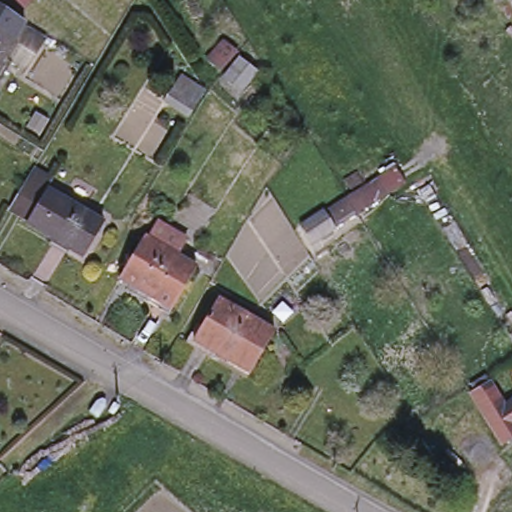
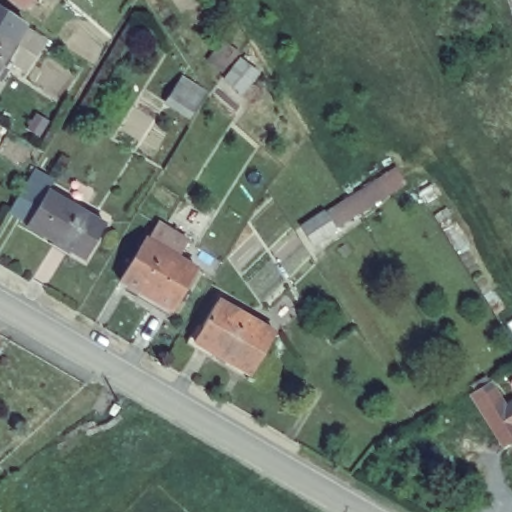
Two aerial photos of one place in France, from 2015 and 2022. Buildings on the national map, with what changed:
unchanged [(24,7),(19,0),(30,0),(24,7)]
unchanged [(21,24),(22,24),(47,41),(26,79),(0,61),(0,62),(0,10),(21,24)]
unchanged [(263,73),(240,94),(206,68),(225,38),(263,73)]
unchanged [(190,113),(168,100),(180,79),(202,92),(190,113)]
unchanged [(410,188),(340,228),(342,237),(315,247),(298,224),(398,167),(410,188)]
unchanged [(33,171),(52,183),(47,193),(28,224),(8,212),(33,171)]
unchanged [(47,193),(102,227),(82,260),(26,227),(28,224),(47,193)]
unchanged [(175,311),(122,280),(147,240),(150,242),(160,225),(190,242),(180,260),(198,270),(175,311)]
unchanged [(247,374),(191,343),(214,301),(270,333),(247,374)]
unchanged [(470,393),(489,381),(512,418),(512,440),(504,445),(470,393)]

